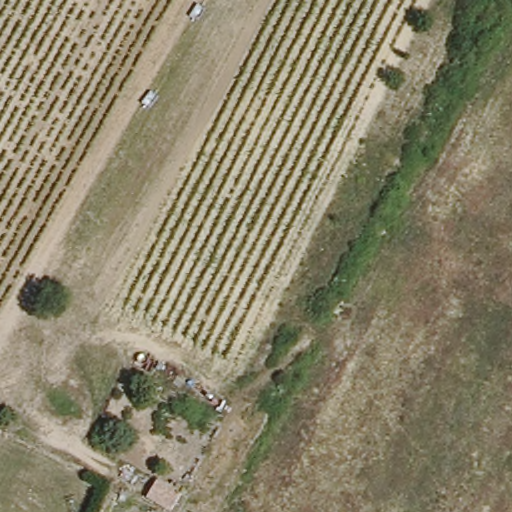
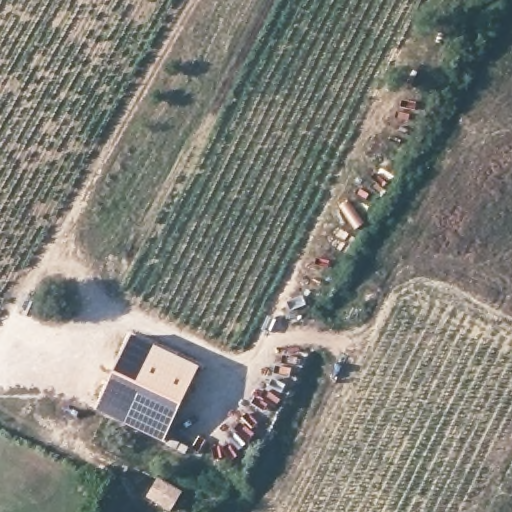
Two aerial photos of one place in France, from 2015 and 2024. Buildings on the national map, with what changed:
new [(200,365),(164,441),(95,409),(132,335),(200,365)]
unchanged [(181,494),(173,510),(146,494),(156,479),(181,494)]

